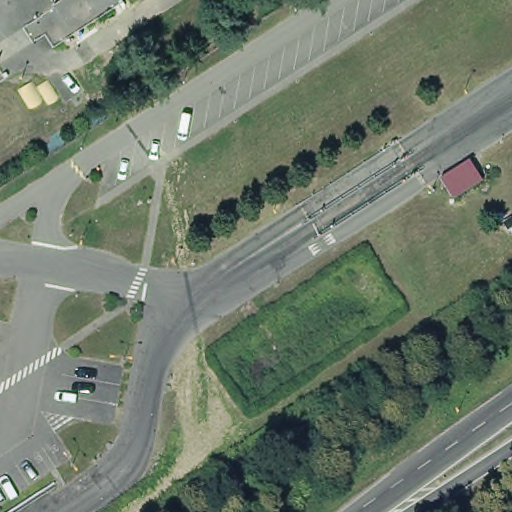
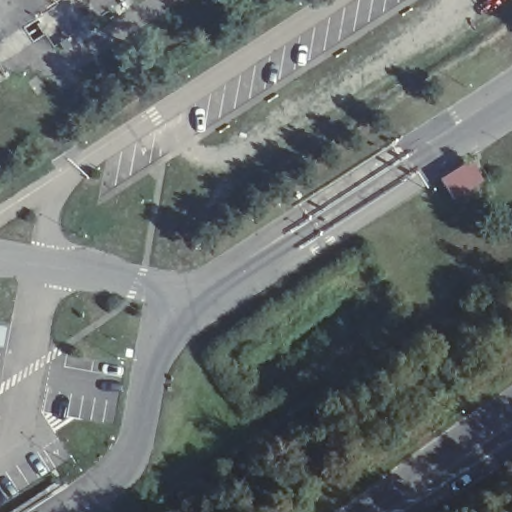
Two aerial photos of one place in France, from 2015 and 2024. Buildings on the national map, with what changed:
unchanged [(487,182),(456,201),(442,180),(473,160),(487,182)]

